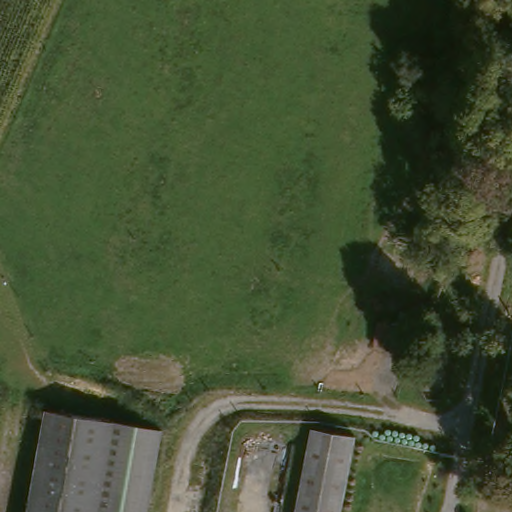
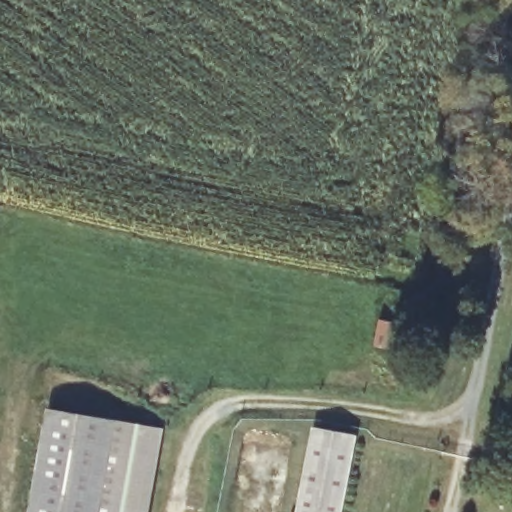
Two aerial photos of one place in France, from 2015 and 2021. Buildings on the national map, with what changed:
unchanged [(420,310),(412,352),(378,347),(387,302),(420,310)]
unchanged [(145,424),(128,512),(35,512),(55,405),(145,424)]
unchanged [(340,512),(294,512),(314,423),(358,433),(340,512)]

